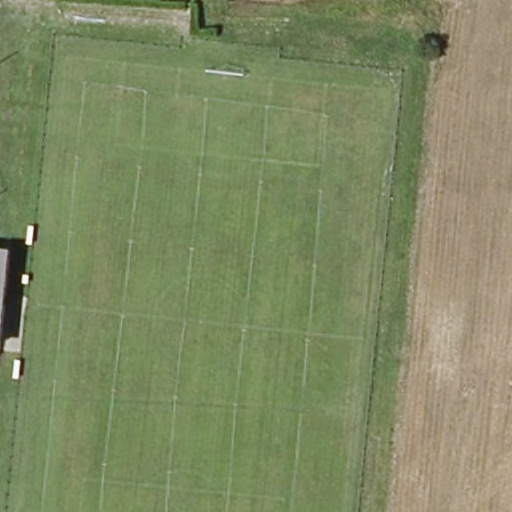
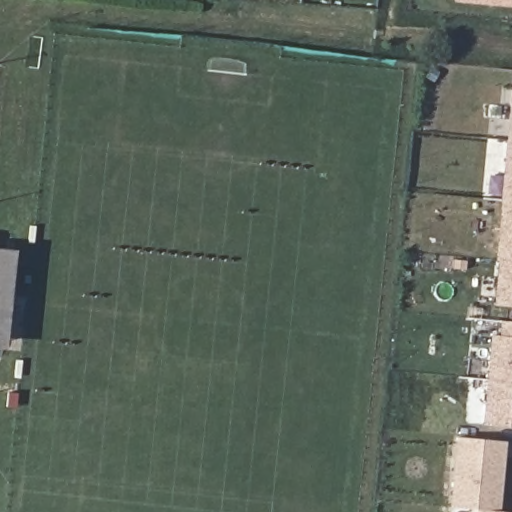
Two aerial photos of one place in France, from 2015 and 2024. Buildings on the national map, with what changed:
new [(512,8),(453,2),(454,0),(512,0),(512,8)]
new [(512,140),(508,140),(512,102),(512,140)]
new [(512,140),(512,199),(502,198),(508,140),(512,140)]
new [(512,199),(512,305),(495,304),(502,198),(512,199)]
unchanged [(7,252),(0,313),(0,251),(7,252)]
new [(502,336),(503,321),(512,321),(512,381),(489,380),(494,335),(502,336)]
new [(512,381),(512,426),(485,424),(489,380),(512,381)]
new [(448,507),(454,437),(505,441),(499,511),(511,512),(476,512),(476,509),(448,507)]

